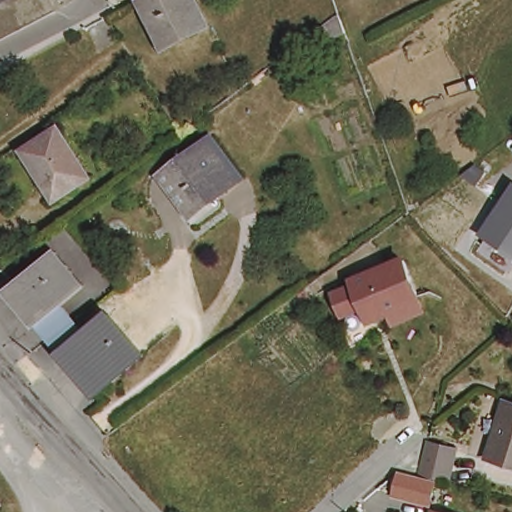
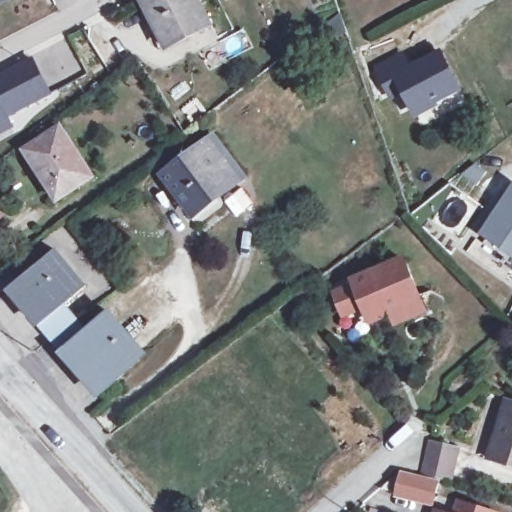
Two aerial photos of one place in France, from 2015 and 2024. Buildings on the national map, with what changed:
unchanged [(0,5),(0,0),(12,0),(0,5)]
unchanged [(216,26),(164,52),(138,4),(145,0),(203,0),(216,26)]
unchanged [(326,40),(320,27),(340,12),(347,33),(326,40)]
new [(401,54),(408,67),(440,51),(459,87),(433,101),(427,99),(411,107),(402,90),(390,96),(375,67),(401,54)]
new [(9,116),(15,129),(0,136),(0,74),(33,57),(53,95),(9,116)]
unchanged [(61,204),(30,156),(66,132),(97,181),(61,204)]
unchanged [(213,137),(243,177),(218,197),(225,206),(198,226),(161,176),(213,137)]
unchanged [(512,255),(478,232),(512,184),(512,255)]
unchanged [(356,283),(354,277),(406,256),(420,292),(390,303),(392,310),(370,318),(365,303),(345,312),(336,291),(356,283)]
unchanged [(100,398),(65,357),(53,344),(42,330),(12,295),(58,257),(87,292),(65,311),(77,326),(87,337),(110,318),(145,360),(100,398)]
unchanged [(504,397),(512,399),(512,462),(492,456),(485,453),(494,427),(504,397)]
unchanged [(459,450),(450,481),(423,473),(433,442),(459,450)]
unchanged [(422,476),(436,480),(430,502),(391,492),(397,470),(422,476)]
unchanged [(443,512),(434,512),(435,510),(443,512)]

